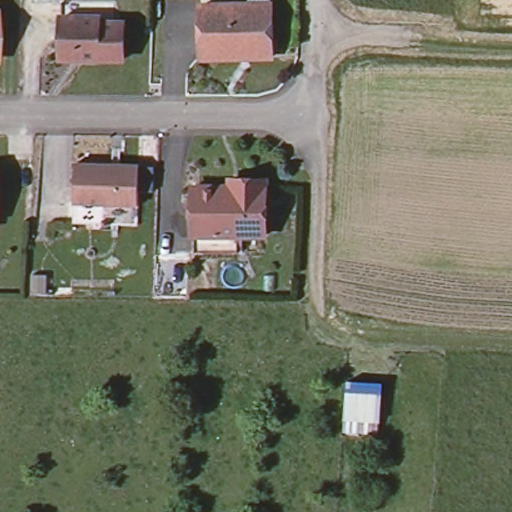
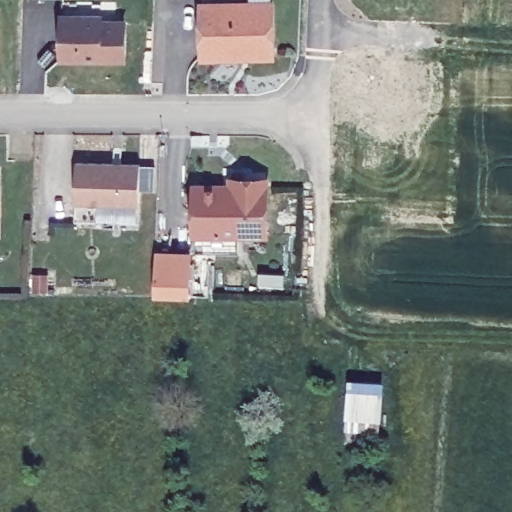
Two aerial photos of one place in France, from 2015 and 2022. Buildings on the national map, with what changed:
unchanged [(201,58),(200,5),(250,4),(250,0),(271,0),(271,4),(272,57),(270,57),(243,57),(201,58)]
unchanged [(100,9),(100,14),(125,15),(123,51),(60,49),(62,7),(100,9)]
unchanged [(102,218),(103,199),(74,198),(75,157),(140,159),(138,199),(138,219),(102,218)]
unchanged [(194,242),(194,224),(194,176),(231,176),(231,168),(265,169),(265,174),(265,224),(238,224),(238,242),(194,242)]
new [(191,252),(190,299),(153,297),(156,250),(191,252)]
unchanged [(381,388),(377,436),(345,433),(348,385),(381,388)]

